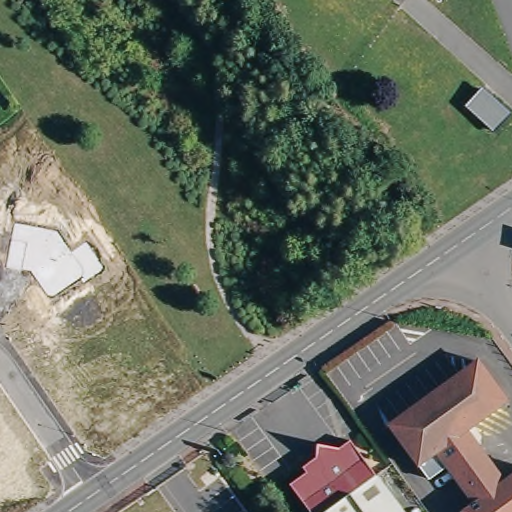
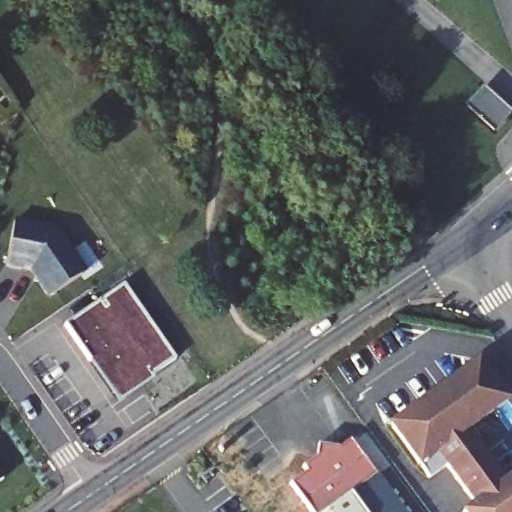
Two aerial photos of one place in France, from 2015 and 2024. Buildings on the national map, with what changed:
new [(465,107),(482,88),(511,114),(493,134),(465,107)]
unchanged [(56,231),(72,252),(86,242),(105,268),(83,282),(79,278),(55,295),(49,294),(31,271),(23,270),(22,271),(8,269),(16,223),(56,231)]
new [(125,282),(179,357),(155,373),(158,377),(120,401),(66,323),(125,282)]
unchanged [(445,464),(429,476),(388,423),(477,358),(507,398),(464,430),(472,442),(479,445),(504,478),(474,502),(445,464)]
unchanged [(293,486),(310,474),(306,469),(320,459),(321,446),(342,450),(354,442),(380,477),(354,496),(365,512),(312,512),(293,486)]
new [(5,477),(0,480),(0,470),(5,477)]
unchanged [(512,472),(512,512),(464,512),(463,510),(474,502),(504,478),(512,472)]
unchanged [(380,477),(405,512),(365,512),(354,496),(380,477)]

